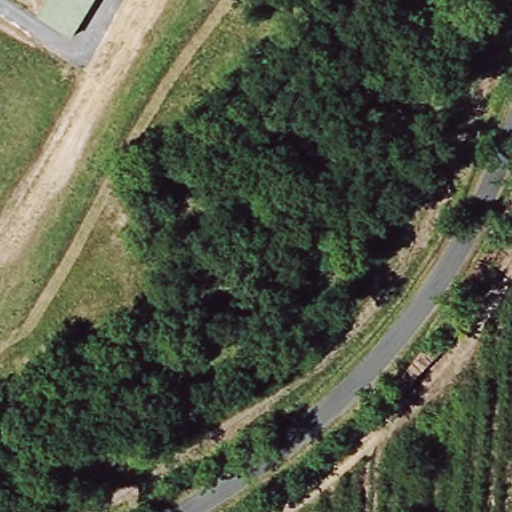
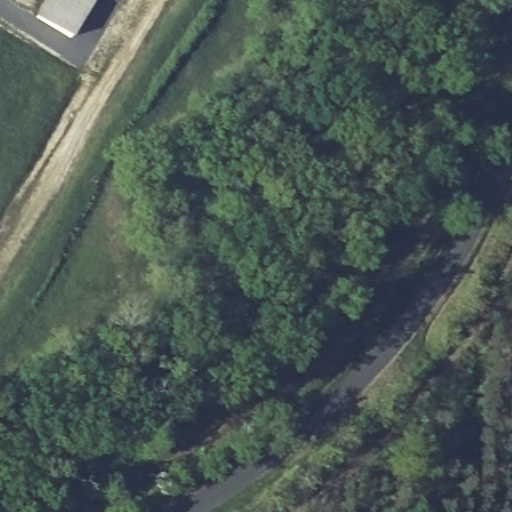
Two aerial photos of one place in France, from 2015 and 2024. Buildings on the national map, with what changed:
unchanged [(95,0),(73,36),(37,16),(46,0),(95,0)]

